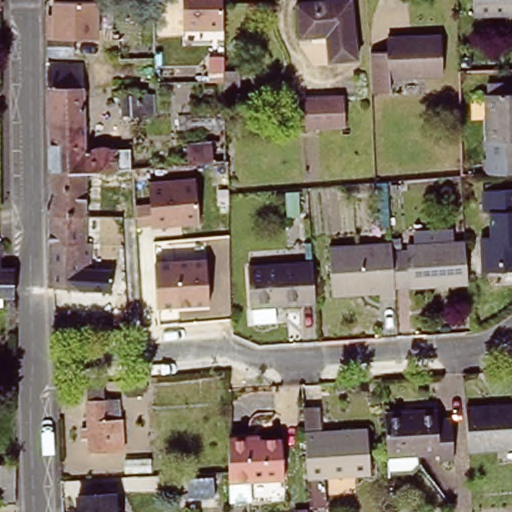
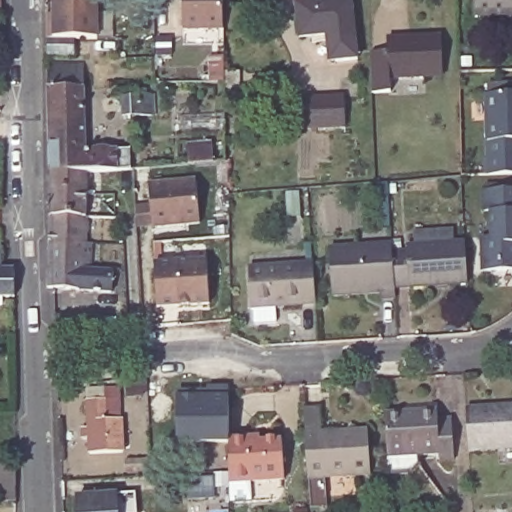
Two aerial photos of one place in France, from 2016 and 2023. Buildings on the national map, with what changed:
unchanged [(48,53),(50,34),(50,0),(96,0),(96,34),(73,38),(73,55),(48,53)]
unchanged [(221,30),(179,28),(180,0),(222,0),(221,30)]
unchanged [(331,34),(304,36),(301,1),(317,0),(354,0),(359,45),(360,59),(339,61),(334,62),(333,47),(331,34)]
unchanged [(474,16),(474,0),(512,0),(512,15),(474,16)]
unchanged [(369,83),(369,53),(386,53),(386,41),(441,40),(442,79),(387,79),(387,93),(369,94),(369,83)]
unchanged [(48,67),(83,66),(84,152),(128,150),(129,169),(85,172),(50,174),(48,67)]
unchanged [(221,71),(236,71),(237,88),(224,89),(221,89),(221,71)]
unchanged [(119,97),(136,97),(136,90),(142,89),(142,97),(149,97),(149,116),(119,116),(119,97)]
unchanged [(488,158),(486,93),(512,92),(512,158),(488,158)]
unchanged [(344,93),(348,128),(303,129),(300,100),(344,93)]
unchanged [(199,143),(209,148),(209,164),(186,165),(186,144),(199,143)]
unchanged [(91,245),(89,272),(113,274),(113,277),(113,292),(113,295),(85,293),(79,292),(48,289),(50,174),(85,172),(84,245),(91,245)]
unchanged [(198,224),(151,228),(146,181),(193,178),(198,224)]
unchanged [(483,269),(481,236),(492,235),(491,210),(484,210),(483,188),(512,187),(512,268),(483,269)]
unchanged [(1,267),(15,267),(14,294),(3,294),(3,306),(0,306),(0,243),(1,242),(1,267)]
unchanged [(467,283),(393,288),(390,252),(405,251),(404,246),(464,242),(467,283)]
unchanged [(374,292),(328,295),(324,248),(389,244),(390,252),(393,288),(394,298),(375,300),(374,292)]
unchanged [(204,259),(206,306),(157,309),(153,262),(204,259)]
unchanged [(318,303),(250,307),(247,267),(315,263),(318,303)]
new [(176,395),(176,389),(207,388),(207,385),(228,386),(228,395),(228,434),(228,443),(176,442),(176,395)]
unchanged [(141,397),(128,398),(126,388),(141,387),(141,397)]
unchanged [(104,408),(118,408),(119,420),(105,420),(105,427),(120,426),(121,456),(89,457),(89,442),(83,443),(83,432),(88,431),(85,394),(103,393),(104,408)]
unchanged [(465,452),(463,407),(512,404),(512,449),(465,452)]
unchanged [(433,419),(447,418),(449,457),(434,458),(434,451),(384,455),(381,417),(381,412),(400,411),(432,408),(433,419)]
unchanged [(367,471),(306,476),(303,432),(364,428),(367,471)]
unchanged [(252,434),(252,438),(284,438),(284,478),(228,478),(228,462),(228,434),(252,434)]
unchanged [(148,463),(149,475),(124,478),(123,466),(148,463)]
unchanged [(0,501),(0,465),(18,465),(18,500),(0,501)]
unchanged [(79,512),(77,493),(115,490),(117,512),(79,512)]

